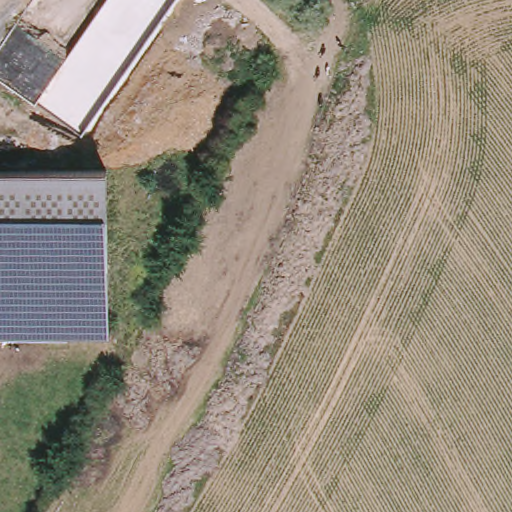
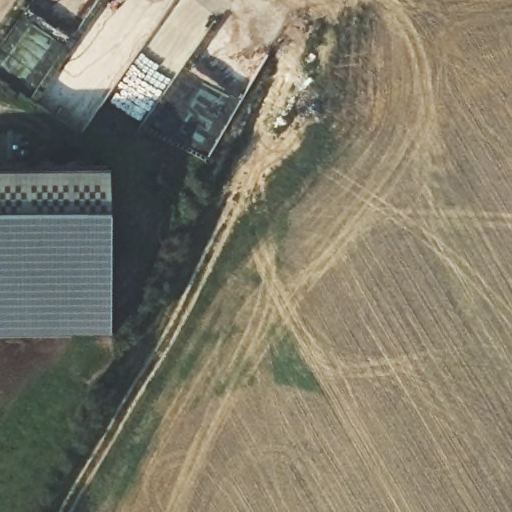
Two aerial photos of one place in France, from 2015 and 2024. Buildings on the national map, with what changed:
unchanged [(105,167),(106,330),(0,331),(0,169),(105,167)]

